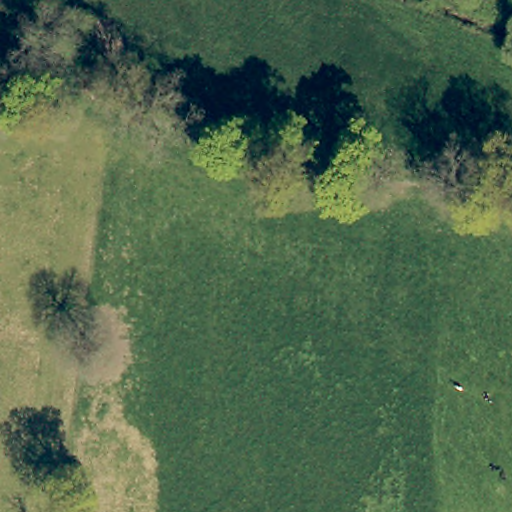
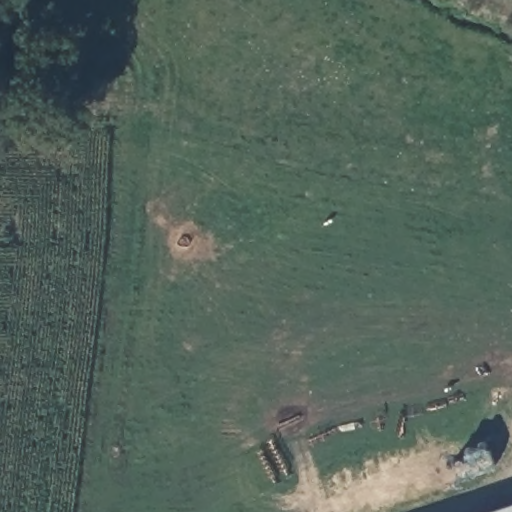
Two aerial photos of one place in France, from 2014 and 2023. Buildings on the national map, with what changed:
new [(512,512),(491,512),(512,505),(512,512)]

